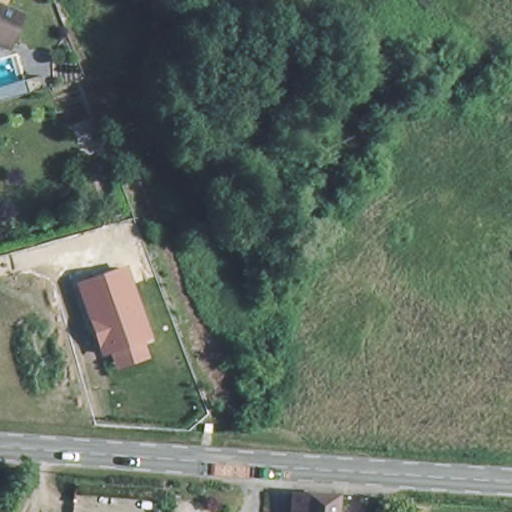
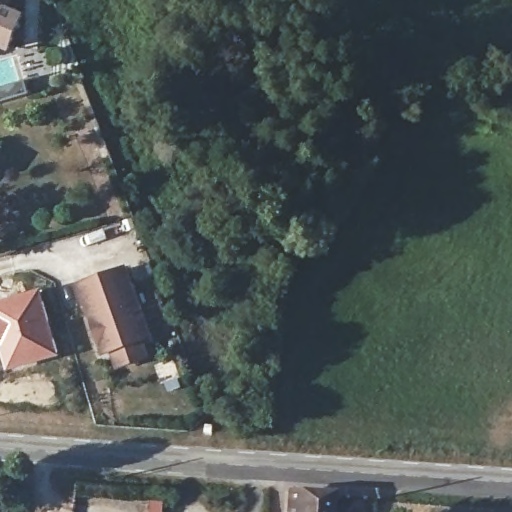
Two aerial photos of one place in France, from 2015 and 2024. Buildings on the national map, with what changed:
unchanged [(7,46),(0,43),(0,1),(20,14),(7,46)]
unchanged [(477,85),(512,83),(512,127),(480,130),(477,85)]
unchanged [(128,266),(152,340),(143,343),(150,357),(117,369),(110,353),(102,357),(77,284),(128,266)]
new [(61,356),(7,372),(0,352),(0,298),(40,286),(61,356)]
unchanged [(330,496),(329,512),(284,512),(283,493),(330,496)]
new [(160,512),(149,512),(148,503),(160,503),(160,512)]

